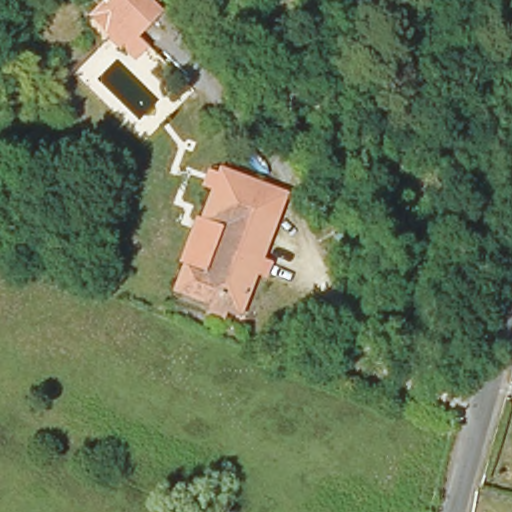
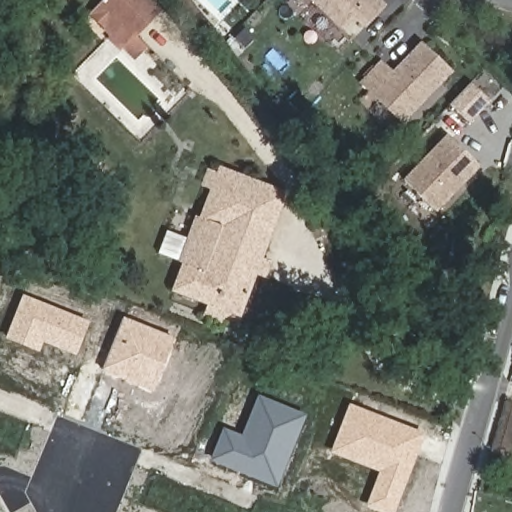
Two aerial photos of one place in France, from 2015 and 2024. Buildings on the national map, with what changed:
unchanged [(137,36),(147,45),(137,59),(107,40),(109,34),(88,14),(100,0),(152,0),(162,8),(137,36)]
new [(365,28),(355,17),(342,30),(312,0),(382,0),(387,5),(365,28)]
new [(402,122),(365,83),(383,62),(394,73),(423,44),(452,72),(402,122)]
new [(452,137),(482,167),(438,212),(407,183),(452,137)]
unchanged [(179,269),(215,175),(280,202),(245,294),(179,269)]
new [(245,294),(239,316),(227,312),(222,322),(202,315),(207,304),(172,291),(179,269),(245,294)]
new [(76,355),(43,342),(40,351),(6,337),(23,295),(90,321),(76,355)]
new [(122,317),(172,338),(152,391),(100,371),(122,317)]
new [(277,487),(210,461),(223,426),(242,435),(257,395),(306,415),(277,487)]
new [(330,453),(349,403),(427,433),(395,512),(379,512),(365,506),(378,471),(330,453)]

